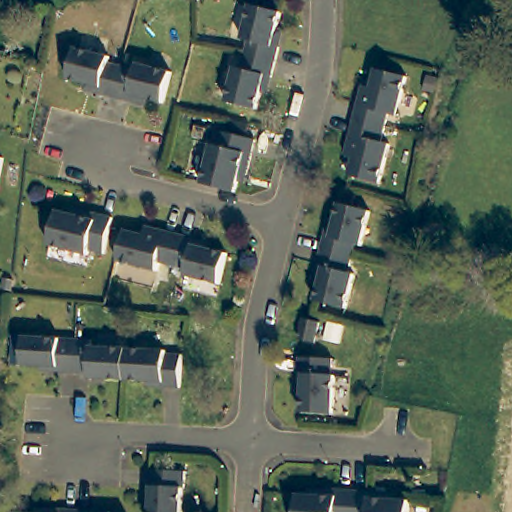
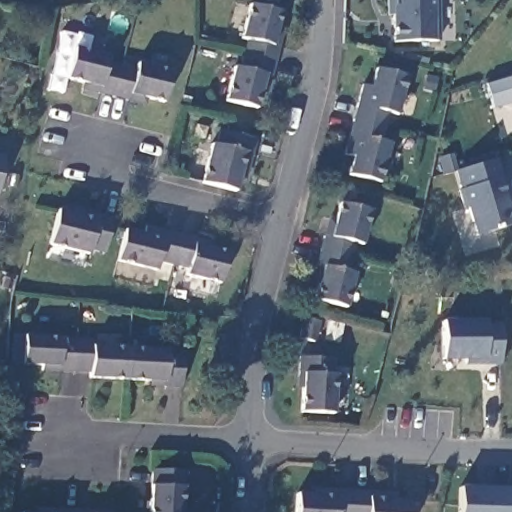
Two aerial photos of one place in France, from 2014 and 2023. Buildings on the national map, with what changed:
new [(439,39),(395,41),(394,14),(389,14),(389,0),(438,0),(439,39)]
unchanged [(260,91),(255,107),(225,99),(234,64),(240,66),(247,39),(240,37),(249,2),(280,10),(276,27),(284,29),(280,46),(271,76),(267,92),(260,91)]
unchanged [(129,100),(113,96),(99,93),(82,89),(84,83),(67,78),(75,47),(104,54),(109,55),(108,61),(121,64),(135,68),(137,62),(170,71),(163,102),(146,98),(144,104),(129,100)]
unchanged [(357,84),(366,86),(371,68),(401,76),(392,114),(384,112),(376,141),(384,143),(374,180),(343,173),(348,155),(339,153),(348,117),(357,84)]
new [(493,106),(485,84),(512,76),(512,101),(493,106)]
unchanged [(237,181),(235,190),(201,181),(211,142),(217,143),(220,130),(255,138),(247,173),(245,183),(237,181)]
new [(512,214),(512,224),(475,234),(467,208),(462,209),(456,189),(460,189),(454,170),(496,160),(512,214)]
unchanged [(311,263),(315,250),(318,234),(323,217),(330,218),(335,202),(367,209),(356,244),(350,243),(346,259),(343,270),(350,272),(341,307),(310,299),(315,282),(306,281),(311,263)]
unchanged [(102,252),(89,249),(88,253),(49,243),(57,209),(69,212),(70,206),(78,208),(111,216),(102,252)]
unchanged [(214,283),(180,274),(182,267),(154,261),(152,269),(112,260),(120,227),(139,231),(141,224),(176,233),(189,237),(206,240),(205,247),(222,251),(214,283)]
unchanged [(303,317),(319,320),(314,340),(299,336),(303,317)]
new [(483,321),(483,327),(500,327),(501,367),(464,366),(464,361),(440,360),(442,320),(483,321)]
unchanged [(70,372),(36,370),(37,365),(17,364),(18,337),(71,339),(70,372)]
unchanged [(87,340),(87,346),(124,347),(123,379),(85,378),(85,373),(70,372),(71,339),(87,340)]
unchanged [(161,348),(162,355),(179,355),(177,387),(159,387),(159,381),(123,379),(124,347),(161,348)]
unchanged [(332,359),(331,375),(335,375),(333,414),(301,413),(303,373),(299,374),(300,357),(332,359)]
unchanged [(180,489),(178,488),(177,512),(146,512),(149,470),(181,472),(180,489)]
new [(459,512),(459,486),(511,487),(510,512),(459,512)]
unchanged [(291,512),(292,493),(312,494),(312,487),(349,489),(348,512),(291,512)]
unchanged [(385,498),(404,500),(403,512),(348,512),(349,489),(385,492),(385,498)]
unchanged [(38,512),(38,509),(73,511),(73,512),(38,512)]
unchanged [(104,512),(73,512),(73,511),(104,512)]

